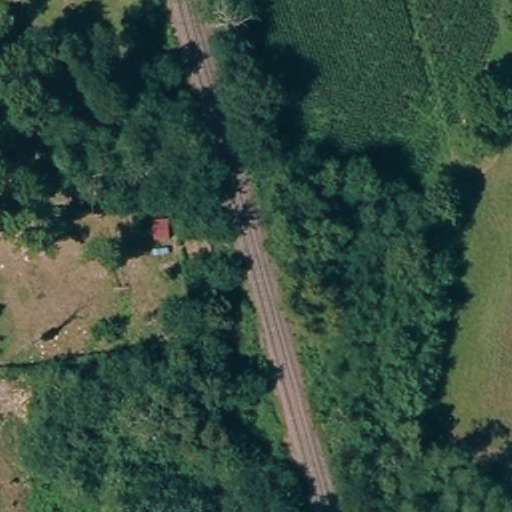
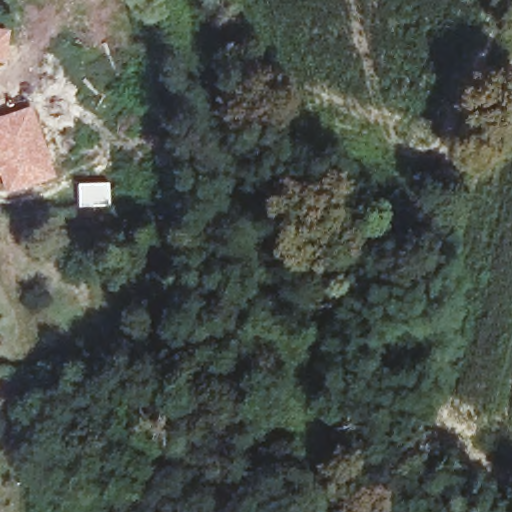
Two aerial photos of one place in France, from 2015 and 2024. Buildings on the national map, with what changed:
new [(10,29),(7,62),(0,61),(0,27),(10,29)]
new [(32,105),(56,177),(1,195),(0,190),(0,116),(32,105)]
new [(109,181),(110,206),(77,207),(76,182),(109,181)]

